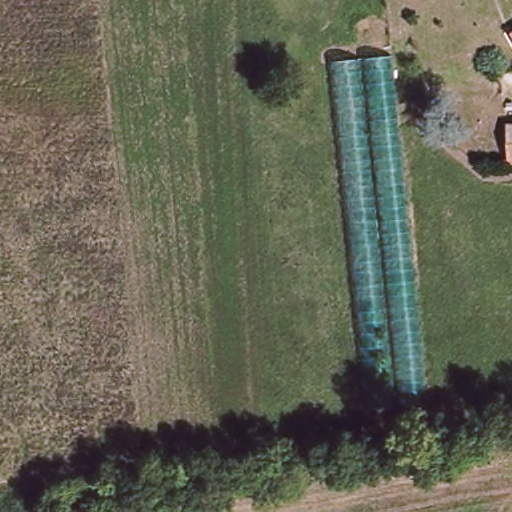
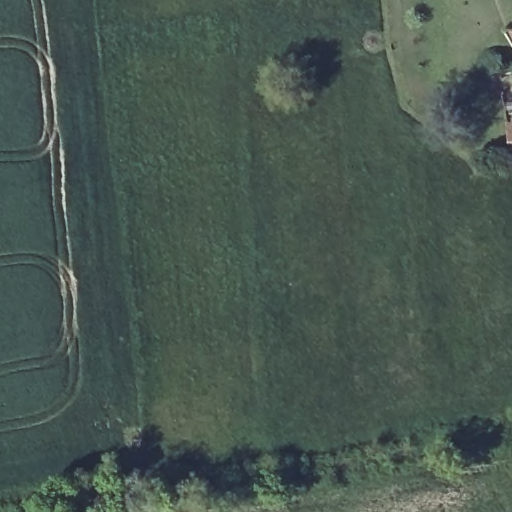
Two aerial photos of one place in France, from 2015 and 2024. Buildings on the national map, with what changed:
demolished [(428,409),(368,413),(332,61),(391,55),(428,409)]

